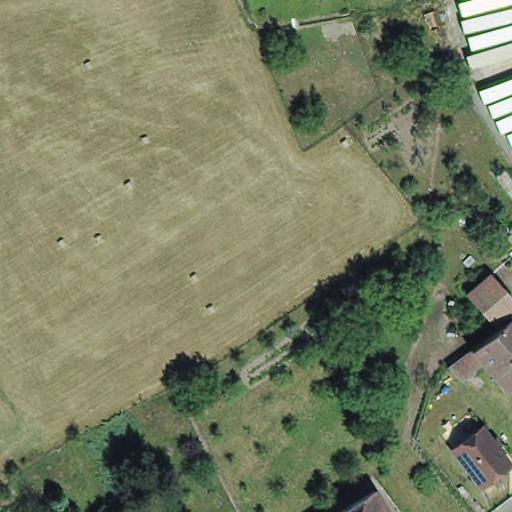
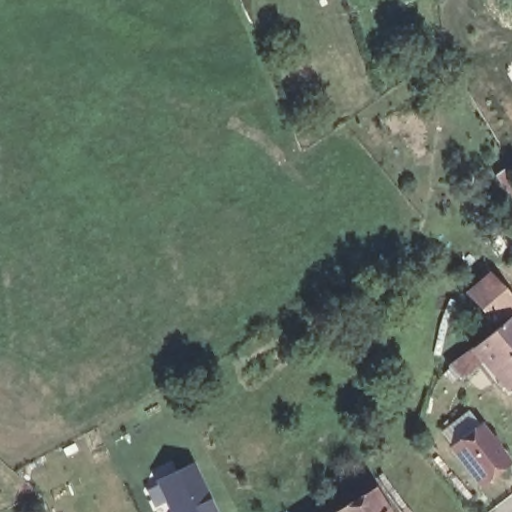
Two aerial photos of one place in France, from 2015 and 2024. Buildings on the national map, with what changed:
unchanged [(512,243),(509,238),(512,236),(512,243)]
unchanged [(512,305),(512,313),(493,329),(466,298),(488,278),(509,301),(512,305)]
unchanged [(459,384),(447,370),(472,352),(508,322),(512,328),(512,385),(505,390),(482,363),(464,383),(462,381),(459,384)]
unchanged [(512,469),(512,470),(484,492),(454,456),(484,433),(512,469)]
new [(192,464),(216,512),(168,512),(156,484),(192,464)]
unchanged [(377,500),(384,512),(357,512),(377,500)]

